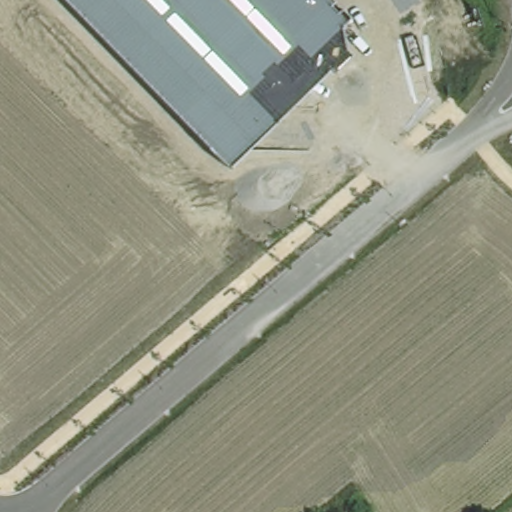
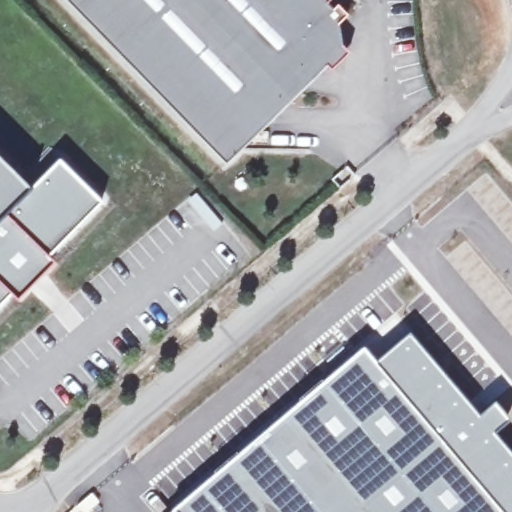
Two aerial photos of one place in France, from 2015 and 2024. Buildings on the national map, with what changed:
unchanged [(343,14),(335,22),(339,44),(344,51),(329,68),(326,65),(223,164),(62,0),(328,0),(343,14)]
new [(29,185),(57,158),(101,201),(47,255),(54,262),(16,300),(11,293),(0,305),(0,157),(29,185)]
new [(409,330),(479,410),(494,398),(510,418),(496,430),(512,450),(512,512),(165,512),(179,498),(363,343),(374,358),(409,330)]

